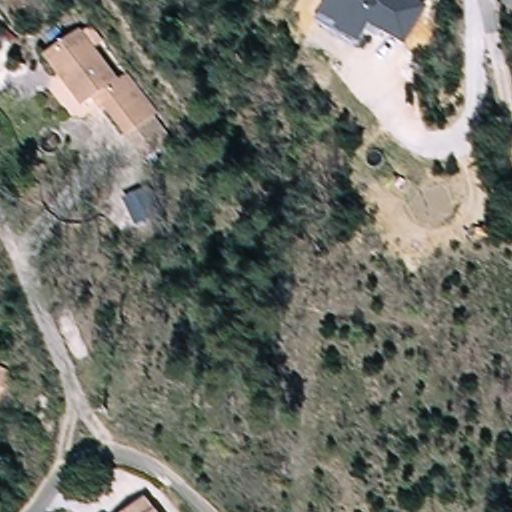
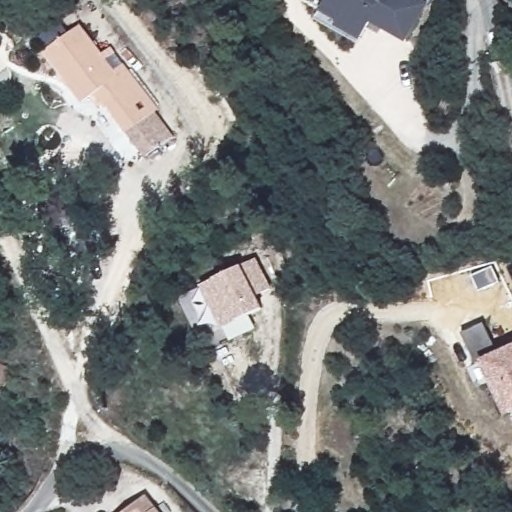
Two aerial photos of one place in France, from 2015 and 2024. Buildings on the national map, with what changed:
unchanged [(317,17),(326,0),(418,0),(425,4),(405,41),(369,24),(357,40),(317,17)]
unchanged [(121,76),(152,117),(120,139),(96,107),(102,101),(96,93),(81,103),(45,55),(80,32),(115,81),(121,76)]
unchanged [(145,156),(127,134),(152,117),(168,138),(145,156)]
new [(215,279),(241,265),(256,258),(272,289),(258,297),(263,308),(237,322),(224,329),(201,287),(215,279)]
new [(496,352),(512,344),(512,413),(506,416),(480,361),(475,363),(462,333),(482,323),(496,352)]
unchanged [(2,372),(0,377),(0,372),(2,372)]
unchanged [(146,503),(153,512),(136,512),(146,503)]

